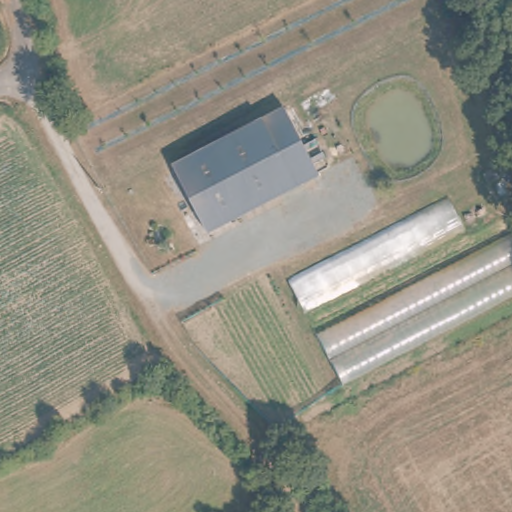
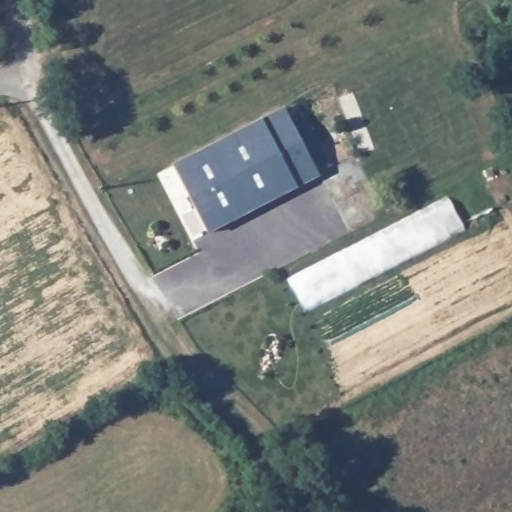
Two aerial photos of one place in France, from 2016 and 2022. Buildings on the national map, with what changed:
unchanged [(207,147),(286,111),(317,179),(238,216),(207,147)]
unchanged [(204,231),(173,163),(207,147),(238,216),(204,231)]
unchanged [(304,310),(291,282),(449,200),(465,229),(304,310)]
demolished [(512,234),(512,296),(342,384),(316,336),(512,234)]

